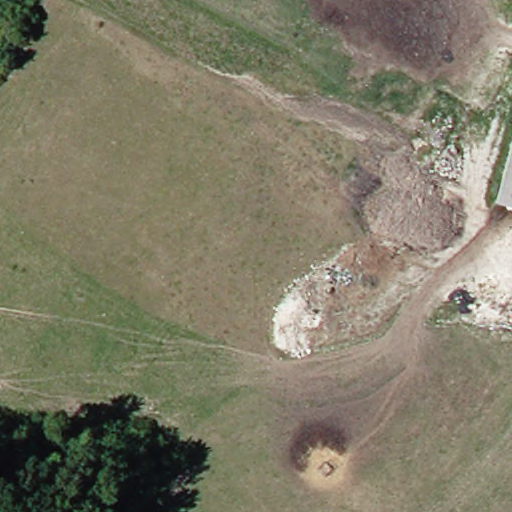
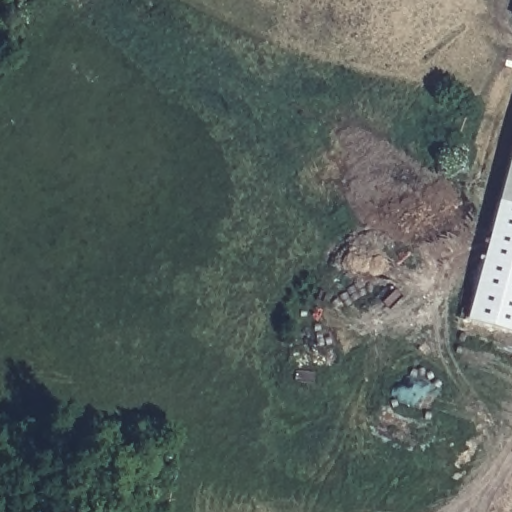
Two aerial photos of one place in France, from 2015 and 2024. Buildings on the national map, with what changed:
unchanged [(512,148),(512,201),(499,197),(512,148)]
new [(499,197),(512,201),(512,331),(467,319),(499,197)]

